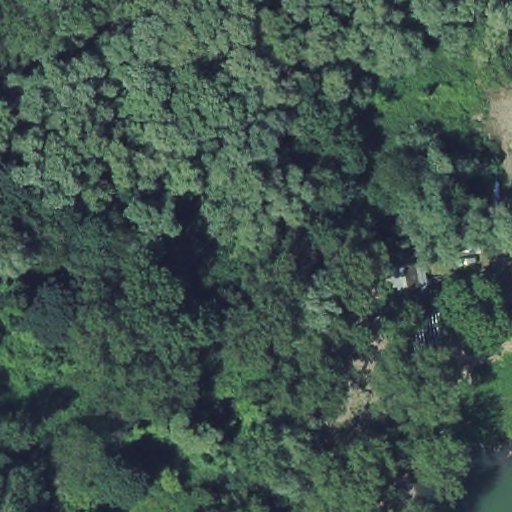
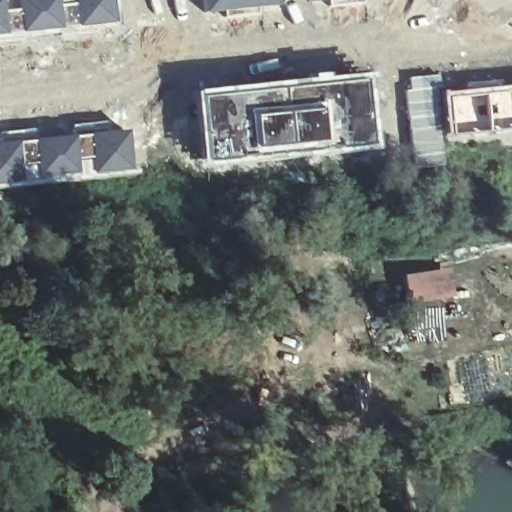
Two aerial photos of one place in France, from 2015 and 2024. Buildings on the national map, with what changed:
new [(6,36),(0,37),(0,0),(3,0),(6,36)]
new [(73,29),(15,35),(12,0),(70,0),(73,29)]
new [(114,26),(73,29),(70,0),(112,0),(114,26)]
new [(276,7),(201,14),(200,0),(275,0),(276,7)]
new [(307,3),(307,0),(335,0),(307,3)]
new [(315,77),(370,73),(375,150),(198,167),(190,93),(315,77)]
new [(409,90),(407,78),(439,75),(440,88),(431,89),(435,119),(442,150),(428,151),(428,157),(413,159),(405,91),(409,90)]
new [(35,138),(65,134),(65,127),(105,123),(105,133),(122,131),(127,173),(87,181),(65,184),(0,190),(0,132),(35,129),(35,138)]
new [(458,310),(443,312),(447,344),(416,348),(405,278),(451,270),(458,310)]

